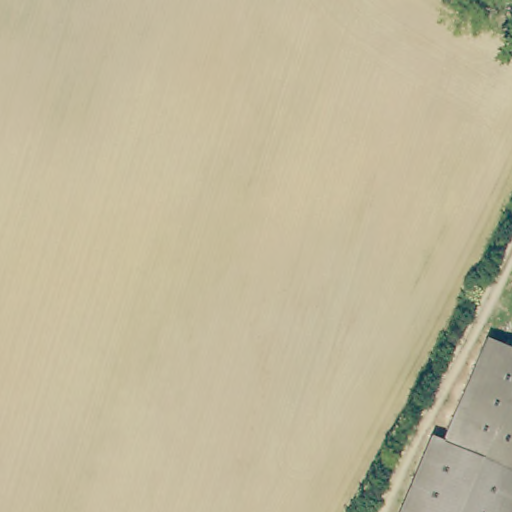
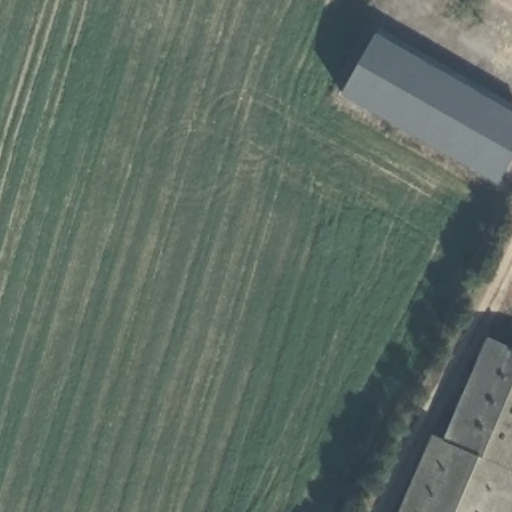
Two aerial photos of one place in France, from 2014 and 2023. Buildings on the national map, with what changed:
new [(512,112),(512,159),(498,184),(340,96),(375,34),(512,112)]
unchanged [(478,375),(492,343),(512,351),(512,504),(509,512),(403,512),(424,462),(432,442),(447,448),(478,375)]

